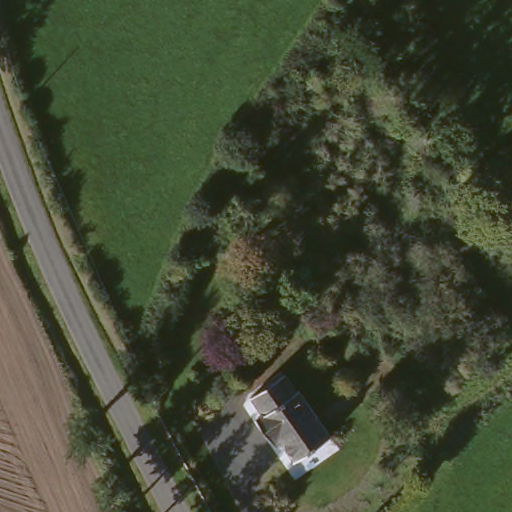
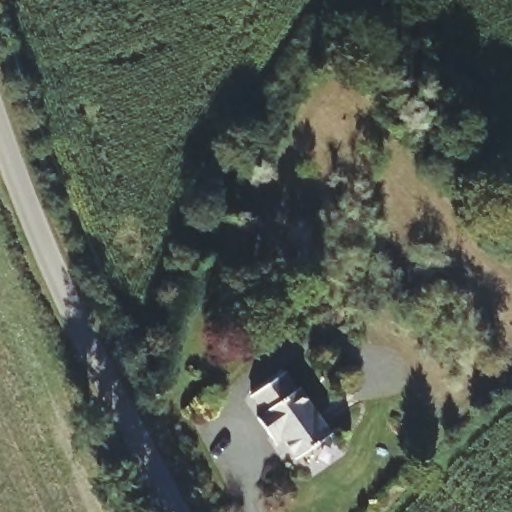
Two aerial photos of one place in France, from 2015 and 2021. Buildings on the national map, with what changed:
unchanged [(246,426),(258,418),(246,401),(290,373),(334,440),(293,468),(278,448),(266,456),(246,426)]

